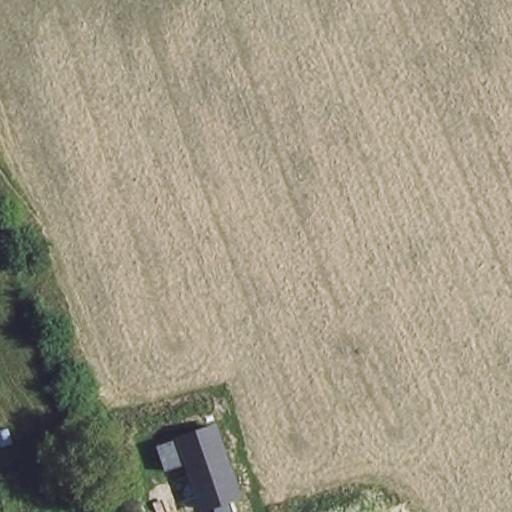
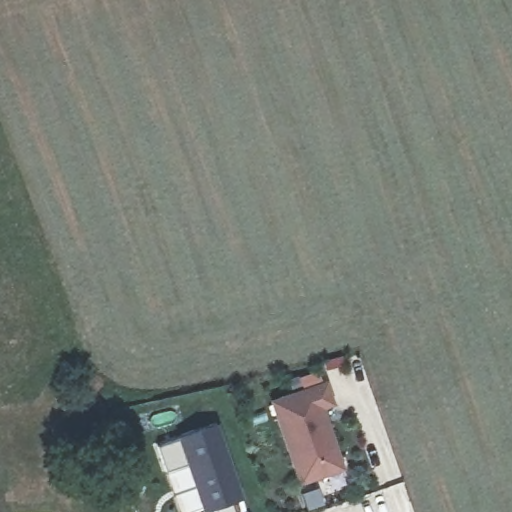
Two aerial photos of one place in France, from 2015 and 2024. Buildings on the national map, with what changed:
new [(344,470),(298,486),(268,399),(326,380),(335,406),(324,409),(344,470)]
unchanged [(213,508),(204,512),(202,512),(185,463),(164,471),(155,446),(217,423),(241,498),(231,502),(234,512),(215,512),(213,508)]

